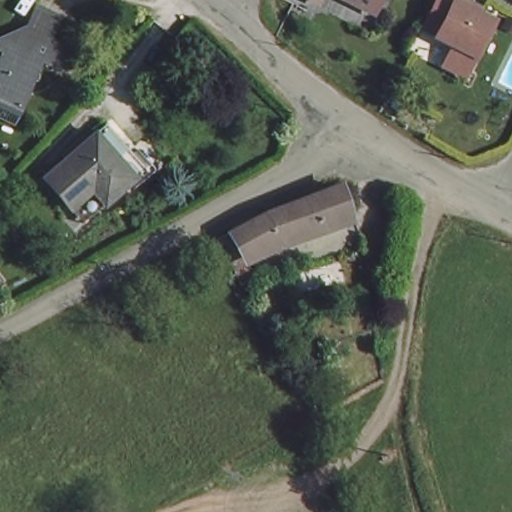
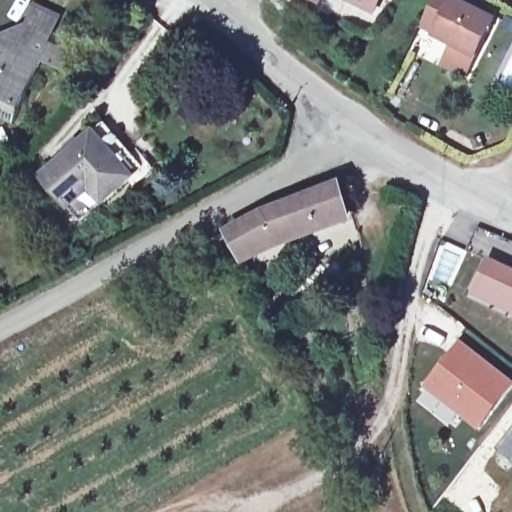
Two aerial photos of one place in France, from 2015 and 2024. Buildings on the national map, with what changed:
unchanged [(0,55),(2,50),(0,49),(0,33),(28,20),(35,0),(51,8),(43,26),(40,32),(52,38),(56,32),(75,42),(62,66),(45,60),(22,108),(15,122),(0,116),(0,55)]
unchanged [(361,0),(374,0),(372,5),(361,0)]
unchanged [(468,50),(428,29),(443,0),(462,0),(487,13),(468,50)]
unchanged [(129,173),(97,199),(86,184),(64,201),(41,171),(95,128),(129,173)]
unchanged [(351,216),(246,257),(231,231),(270,211),(338,184),(351,216)]
new [(471,294),(487,256),(512,268),(512,314),(471,294)]
new [(478,429),(423,387),(460,340),(512,381),(512,386),(478,429)]
new [(497,448),(512,428),(512,460),(497,448)]

